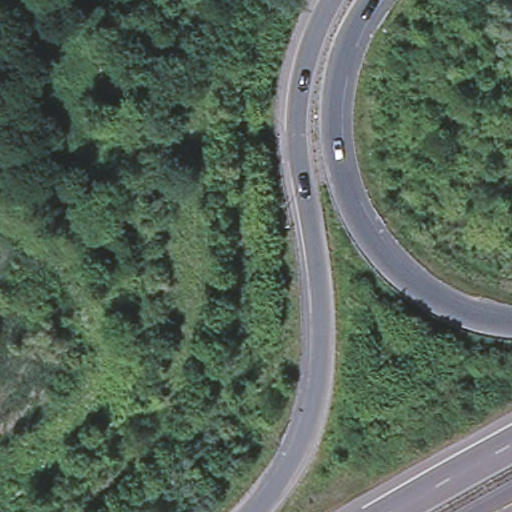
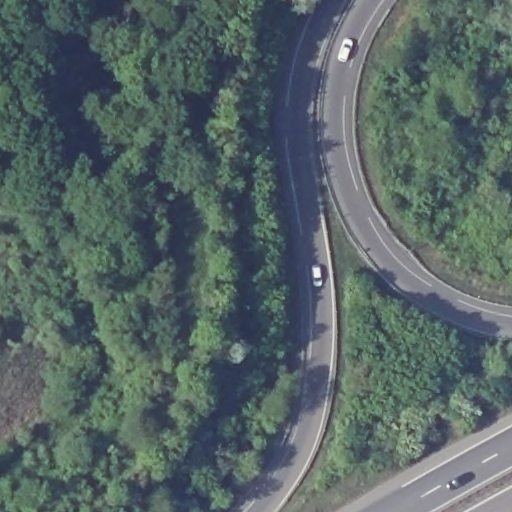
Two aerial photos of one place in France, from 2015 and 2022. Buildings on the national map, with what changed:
[]

